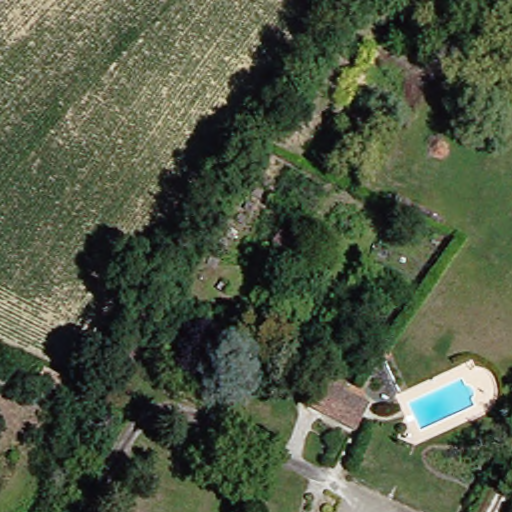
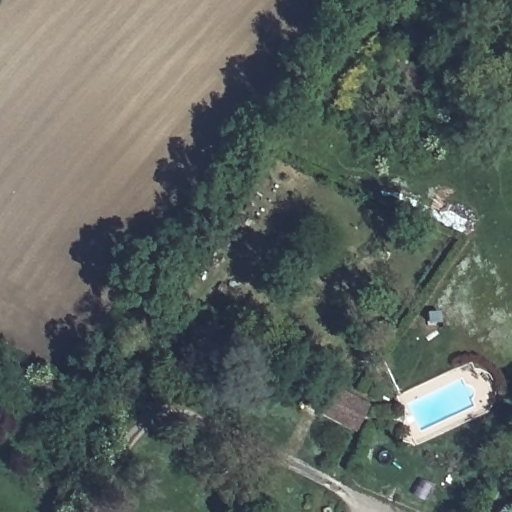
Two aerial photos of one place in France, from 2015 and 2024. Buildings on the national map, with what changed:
unchanged [(328,375),(384,401),(371,435),(314,405),(328,375)]

